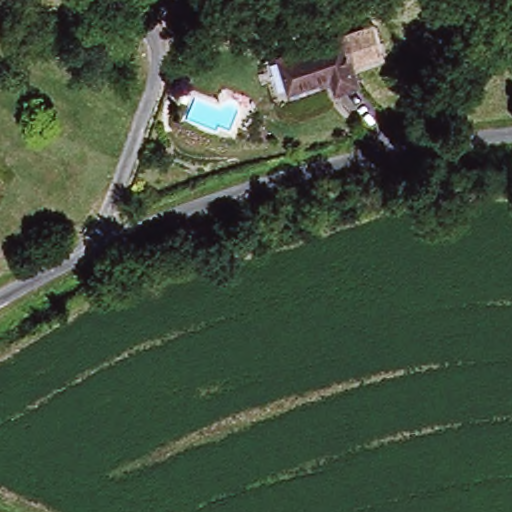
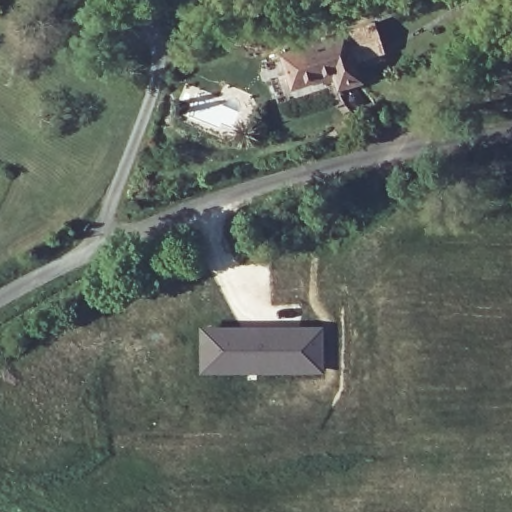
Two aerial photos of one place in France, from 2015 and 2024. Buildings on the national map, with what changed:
unchanged [(337,85),(316,91),(312,78),(270,91),(260,58),(354,28),(362,53),(330,63),(337,85)]
new [(197,325),(272,323),(323,325),(323,374),(197,375),(197,325)]

